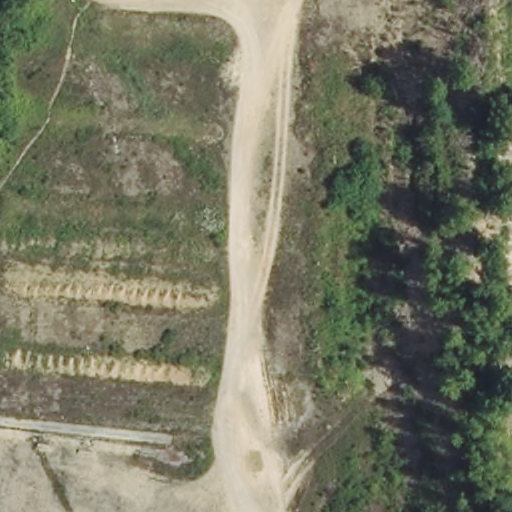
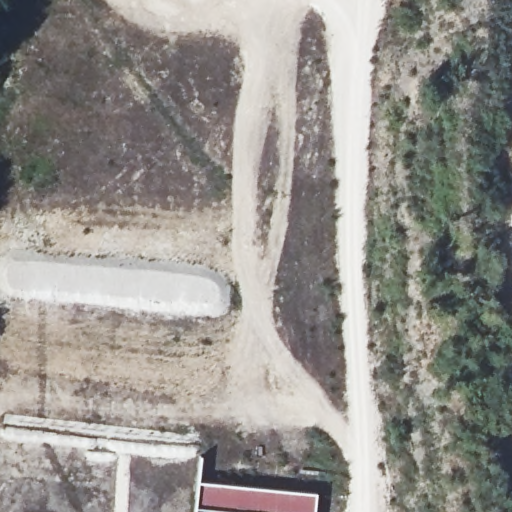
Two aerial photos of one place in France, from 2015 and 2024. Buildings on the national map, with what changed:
new [(199,481),(316,492),(314,512),(195,512),(199,481)]

